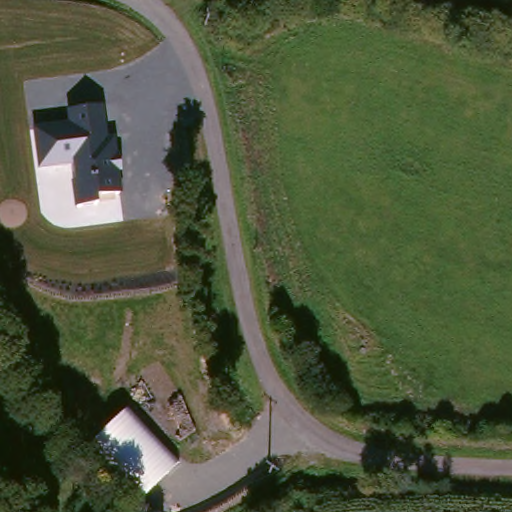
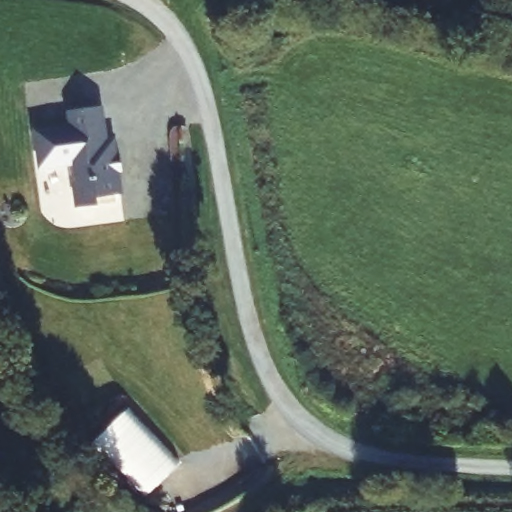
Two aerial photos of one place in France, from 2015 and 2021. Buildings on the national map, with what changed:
unchanged [(69,181),(74,180),(73,165),(38,169),(33,127),(68,123),(66,110),(104,106),(109,139),(114,137),(121,193),(96,195),(97,203),(74,207),(69,181)]
unchanged [(14,284),(21,322),(1,329),(0,327),(0,288),(14,284)]
unchanged [(144,494),(94,441),(124,411),(176,464),(144,494)]

